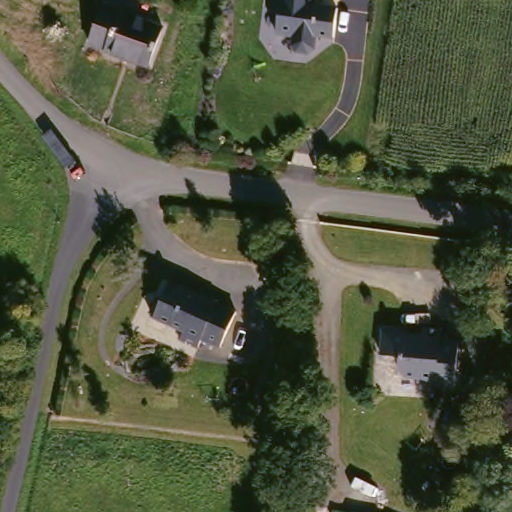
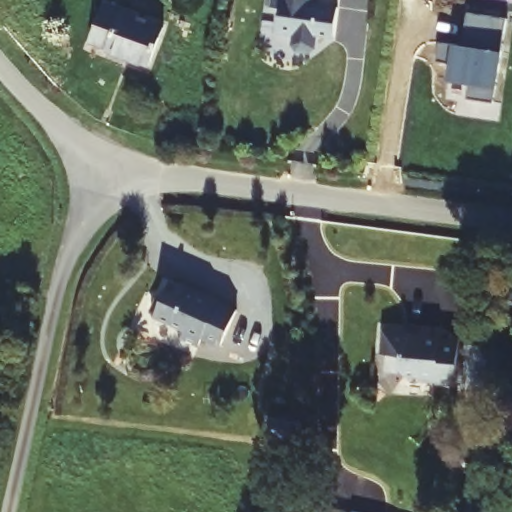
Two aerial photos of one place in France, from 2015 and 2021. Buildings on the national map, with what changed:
unchanged [(164,23),(149,61),(91,39),(107,0),(164,23)]
unchanged [(317,0),(316,4),(342,10),(336,39),(319,35),(316,48),(309,52),(296,50),(292,43),(294,33),(279,29),(284,5),(274,3),(275,0),(317,0)]
new [(473,10),(512,16),(497,100),(471,95),(474,79),(453,75),(456,60),(448,59),(441,57),(444,39),(451,40),(467,43),(473,10)]
unchanged [(223,347),(204,338),(200,347),(182,338),(187,330),(157,315),(154,310),(160,298),(166,296),(173,281),(203,295),(204,293),(222,302),(221,303),(239,312),(223,347)]
unchanged [(511,301),(511,300),(512,294),(512,301),(511,301)]
unchanged [(439,379),(439,377),(422,376),(422,372),(409,371),(403,365),(404,350),(385,348),(387,325),(409,327),(412,331),(426,332),(427,322),(446,325),(444,335),(463,336),(459,381),(439,379)]

